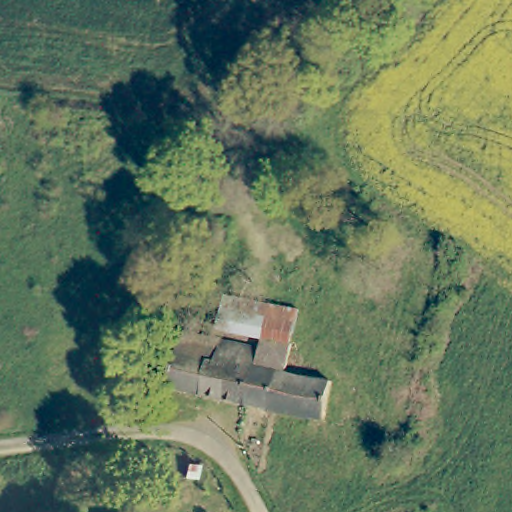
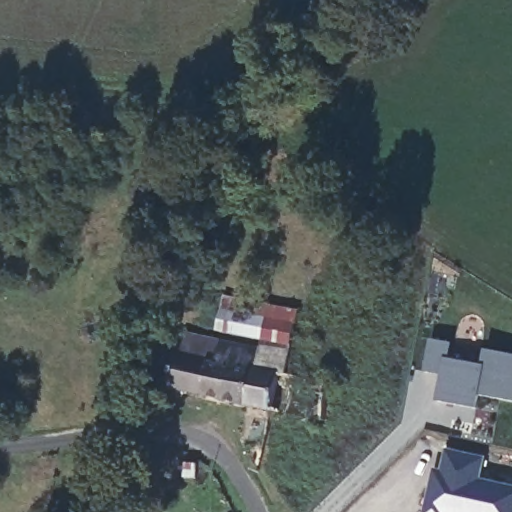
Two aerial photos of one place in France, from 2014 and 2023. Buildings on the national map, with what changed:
unchanged [(293,343),(266,338),(226,330),(220,329),(227,296),(232,297),(272,305),(300,311),(293,343)]
unchanged [(171,391),(180,344),(183,345),(185,334),(224,342),(220,362),(214,361),(205,398),(171,391)]
new [(477,409),(437,402),(441,375),(426,372),(432,339),(453,343),(450,358),(483,364),(485,350),(512,355),(512,400),(480,394),(477,409)]
unchanged [(214,361),(220,362),(224,342),(260,349),(248,406),(205,398),(214,361)]
unchanged [(248,406),(260,349),(261,344),(290,349),(285,373),(280,372),(271,411),(248,406)]
demolished [(336,383),(336,386),(328,423),(271,411),(280,372),(285,373),(290,374),(336,383)]
new [(441,478),(446,455),(485,464),(480,487),(512,495),(512,512),(426,512),(430,492),(434,477),(441,478)]
unchanged [(194,465),(192,478),(185,477),(179,476),(181,463),(194,465)]

